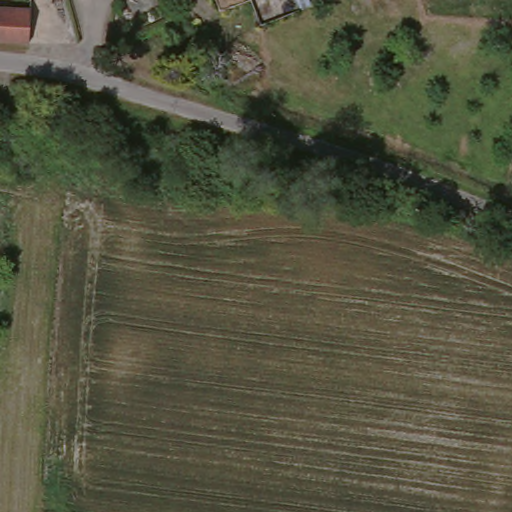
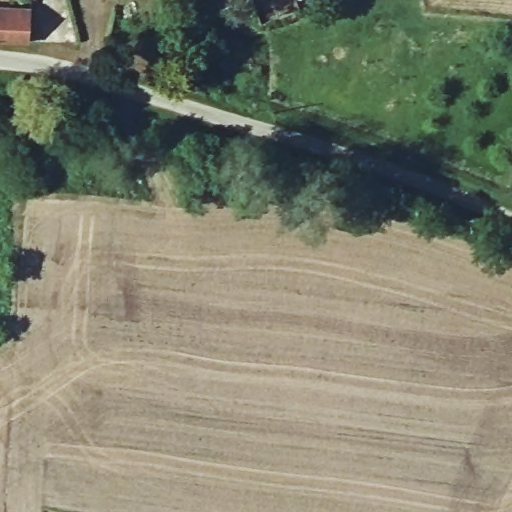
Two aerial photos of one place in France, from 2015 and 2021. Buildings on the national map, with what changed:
unchanged [(18,44),(0,43),(0,11),(23,13),(18,44)]

